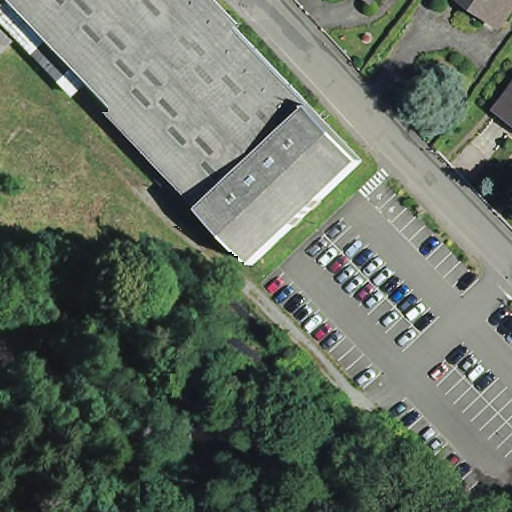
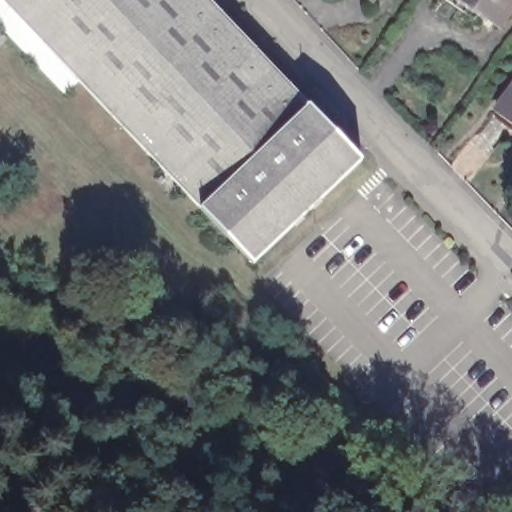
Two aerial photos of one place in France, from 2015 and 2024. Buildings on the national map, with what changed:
unchanged [(53,79),(0,24),(0,0),(3,0),(66,67),(59,72),(53,79)]
unchanged [(211,0),(310,104),(201,207),(66,67),(3,0),(211,0)]
unchanged [(372,0),(389,0),(383,8),(372,0)]
unchanged [(512,0),(512,4),(501,20),(482,7),(476,14),(455,0),(512,0)]
unchanged [(8,38),(0,47),(0,31),(8,38)]
unchanged [(512,119),(494,106),(512,82),(512,119)]
unchanged [(201,207),(310,104),(366,160),(254,266),(201,207)]

